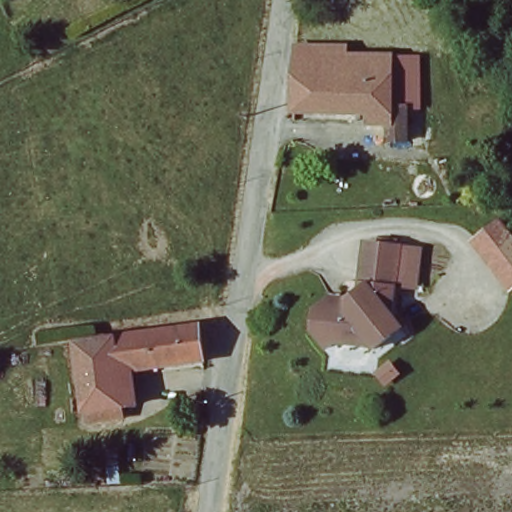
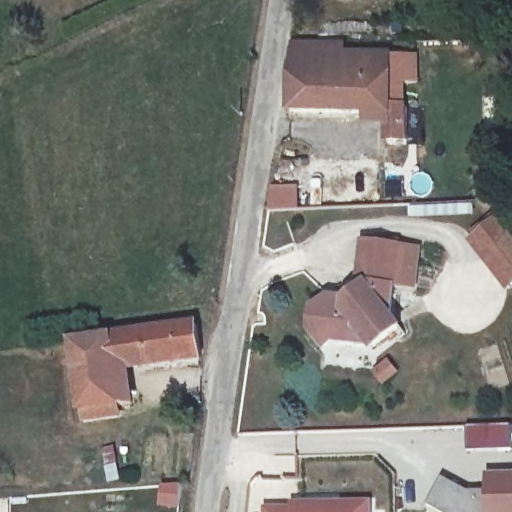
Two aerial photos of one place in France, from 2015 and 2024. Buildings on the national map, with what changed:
new [(415,1),(335,5),(334,0),(414,0),(415,1)]
unchanged [(403,147),(387,148),(386,119),(292,116),(293,51),(347,50),(348,55),(413,55),(414,116),(415,147),(403,147)]
unchanged [(497,216),(512,237),(512,277),(507,281),(472,235),(497,216)]
unchanged [(395,329),(367,350),(357,337),(338,333),(319,347),(306,329),(310,308),(325,297),(344,300),(354,292),(362,243),(390,247),(397,249),(391,283),(385,316),(395,329)]
unchanged [(153,329),(198,320),(205,352),(155,362),(153,329)]
unchanged [(155,362),(122,369),(125,402),(81,409),(72,343),(153,329),(155,362)]
new [(442,478),(468,492),(485,490),(486,473),(512,472),(512,512),(442,512),(428,505),(442,478)]
new [(290,502),(372,500),(372,512),(263,512),(264,507),(290,507),(290,502)]

